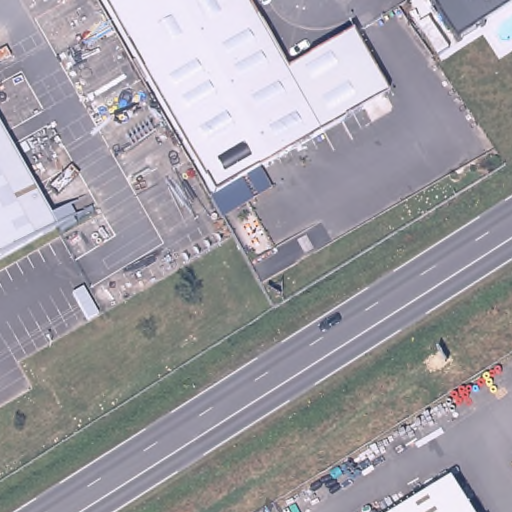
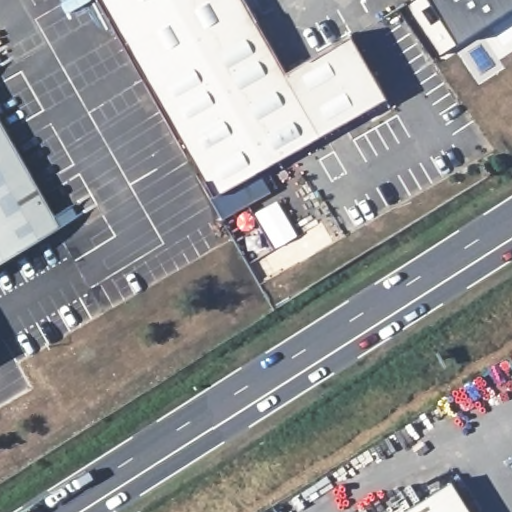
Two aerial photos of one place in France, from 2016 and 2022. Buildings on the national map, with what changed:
unchanged [(286,75),(352,38),(387,98),(216,197),(102,0),(244,0),(286,75)]
unchanged [(431,0),(512,0),(512,7),(457,42),(431,0)]
unchanged [(0,264),(0,134),(56,231),(0,264)]
unchanged [(470,512),(412,512),(454,486),(470,512)]

